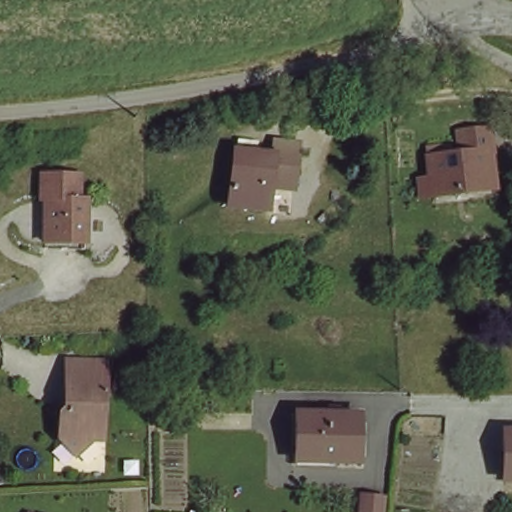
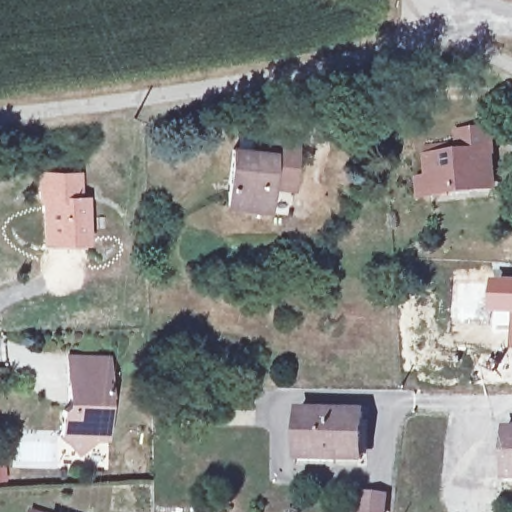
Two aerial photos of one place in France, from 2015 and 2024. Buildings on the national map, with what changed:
unchanged [(420,179),(434,177),(432,160),(467,157),(465,131),(495,130),(497,155),(489,156),(492,189),(435,193),(420,195),(420,179)]
unchanged [(270,187),(267,202),(265,211),(230,208),(235,152),(275,154),(275,143),(297,144),(296,179),(295,189),(270,187)]
unchanged [(45,239),(45,233),(45,192),(40,190),(40,166),(80,167),(80,190),(87,191),(87,228),(87,239),(45,239)]
new [(494,278),(512,279),(512,316),(494,316),(494,278)]
unchanged [(110,357),(108,436),(96,436),(82,450),(65,434),(66,407),(70,407),(72,356),(110,357)]
unchanged [(357,402),(355,455),(335,455),(334,449),(295,449),(297,401),(357,402)]
unchanged [(504,472),(504,428),(512,429),(512,472),(504,472)]
unchanged [(382,504),(359,504),(359,482),(382,482),(382,504)]
unchanged [(49,512),(33,512),(35,507),(49,512)]

